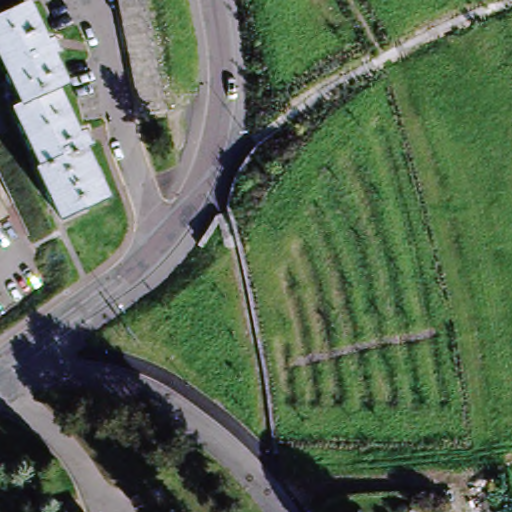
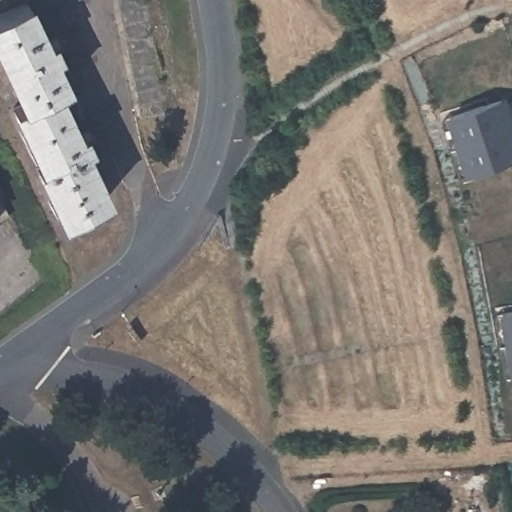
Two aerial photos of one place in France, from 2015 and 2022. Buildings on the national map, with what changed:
unchanged [(0,32),(0,14),(32,0),(37,0),(53,38),(59,36),(64,49),(60,51),(72,80),(65,83),(30,99),(0,32)]
unchanged [(115,0),(142,0),(161,115),(136,119),(115,0)]
unchanged [(85,127),(90,125),(96,138),(91,141),(115,195),(68,216),(44,164),(46,161),(20,103),(30,99),(65,83),(85,127)]
new [(509,98),(512,106),(512,128),(464,145),(454,116),(462,113),(504,99),(509,98)]
new [(464,145),(512,128),(512,160),(473,173),(464,145)]
new [(512,341),(507,312),(512,311),(512,341),(512,342),(512,341)]

